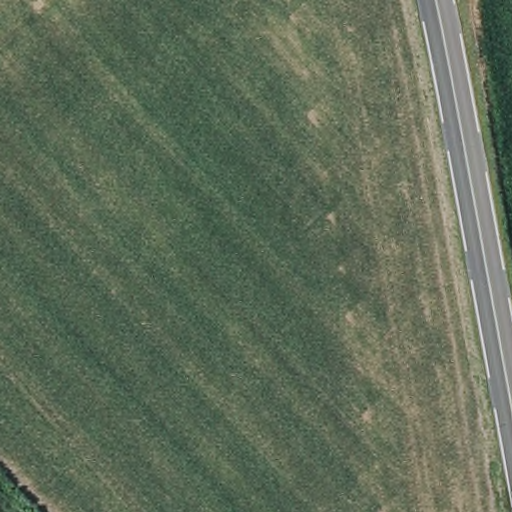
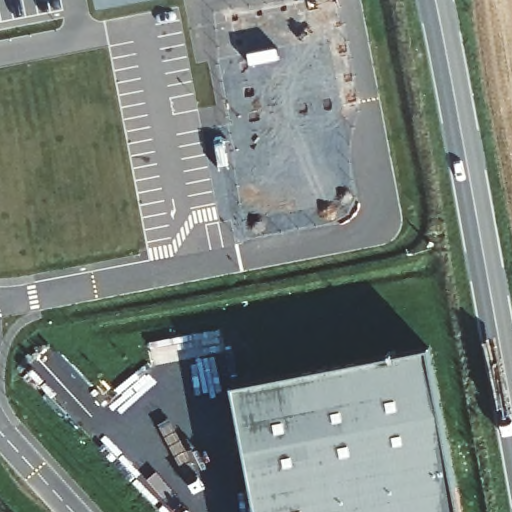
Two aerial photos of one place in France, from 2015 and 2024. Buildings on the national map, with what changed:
new [(428,351),(459,512),(259,512),(235,388),(428,351)]

